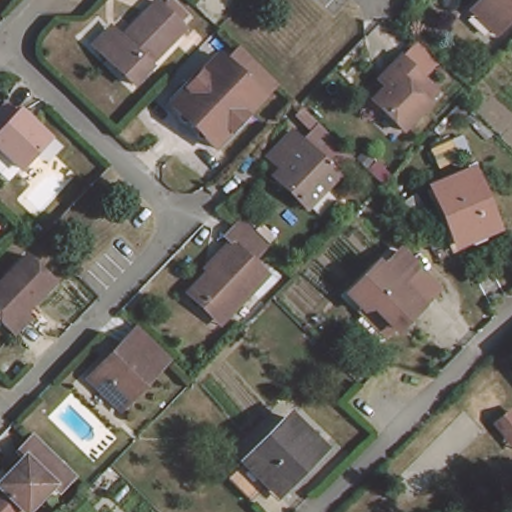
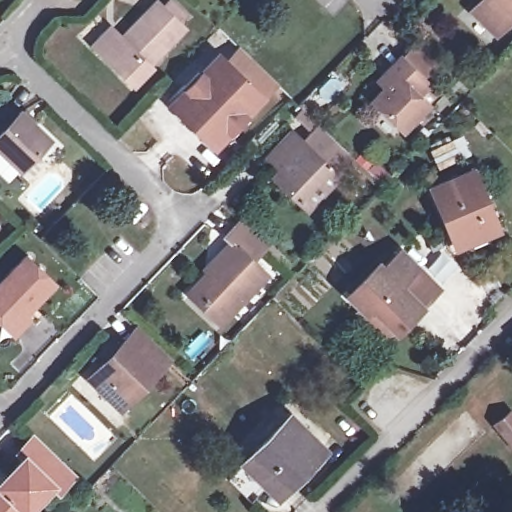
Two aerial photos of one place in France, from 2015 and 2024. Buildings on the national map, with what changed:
unchanged [(474,9),(482,0),(512,0),(512,19),(499,33),(474,9)]
unchanged [(160,1),(188,27),(152,64),(155,66),(137,85),(100,50),(95,45),(114,25),(119,31),(125,37),(160,1)]
unchanged [(214,146),(170,103),(187,86),(219,53),(227,61),(240,46),(277,81),(244,115),(230,128),(214,146)]
unchanged [(434,80),(422,92),(432,102),(407,129),(377,100),(390,85),(383,79),(390,72),(406,55),(434,80)]
unchanged [(50,134),(19,166),(0,147),(0,107),(9,98),(19,109),(22,107),(50,134)]
unchanged [(272,175),(262,165),(286,140),(298,152),(312,137),(325,149),(327,148),(346,167),(330,182),(332,185),(300,218),(282,200),(264,182),(272,175)]
unchanged [(499,230),(460,246),(434,187),(472,171),(499,230)]
unchanged [(192,295),(199,287),(214,271),(211,267),(218,260),(236,241),(231,236),(246,220),(272,245),(257,259),(272,273),(230,317),(224,325),(192,295)]
unchanged [(392,323),(370,301),(360,303),(345,288),(375,259),(379,263),(397,246),(433,281),(392,323)]
unchanged [(10,333),(1,325),(0,324),(0,278),(22,255),(51,283),(22,313),(25,317),(10,333)]
unchanged [(170,358),(122,408),(88,377),(104,361),(106,362),(125,344),(122,342),(136,327),(170,358)]
unchanged [(512,411),(512,444),(497,425),(512,411)]
unchanged [(277,478),(262,495),(239,473),(298,412),(331,442),(287,488),(277,478)]
unchanged [(4,490),(1,487),(15,472),(9,466),(25,449),(67,488),(50,506),(45,501),(34,512),(0,512),(0,493),(4,490)]

